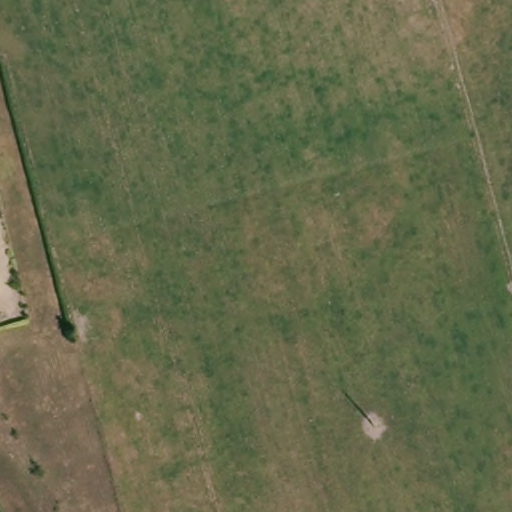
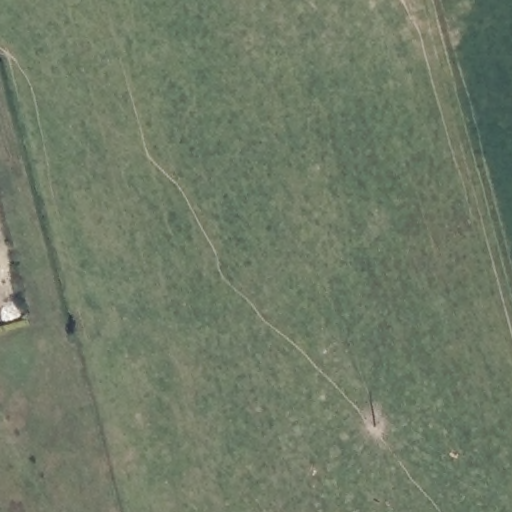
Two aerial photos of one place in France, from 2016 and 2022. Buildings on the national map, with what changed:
unchanged [(2,302),(0,303),(0,293),(2,302)]

